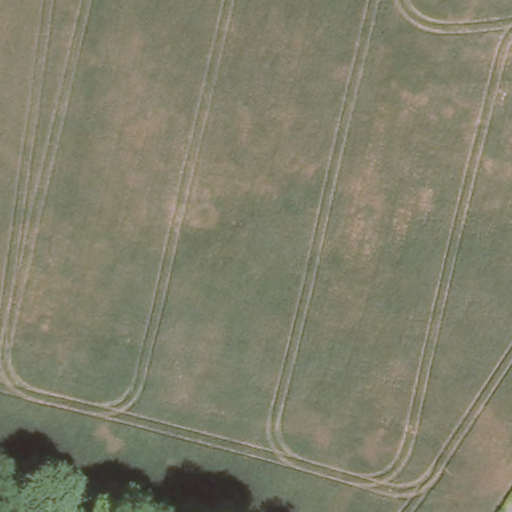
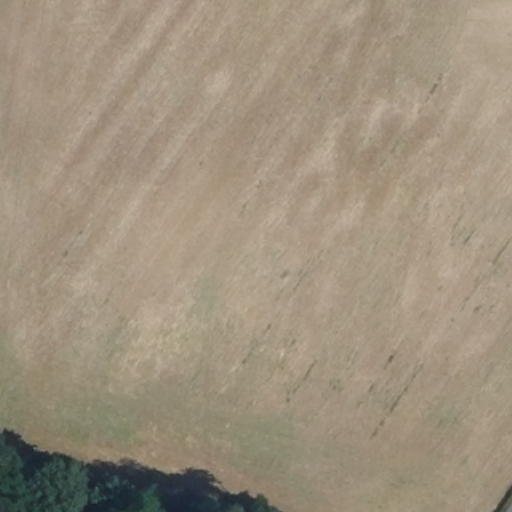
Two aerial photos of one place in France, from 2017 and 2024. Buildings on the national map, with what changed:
[]

